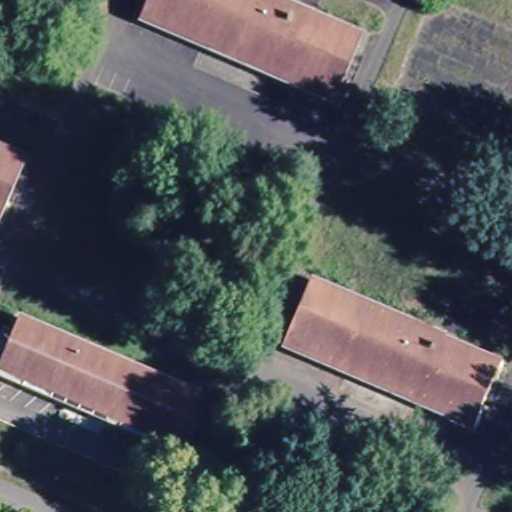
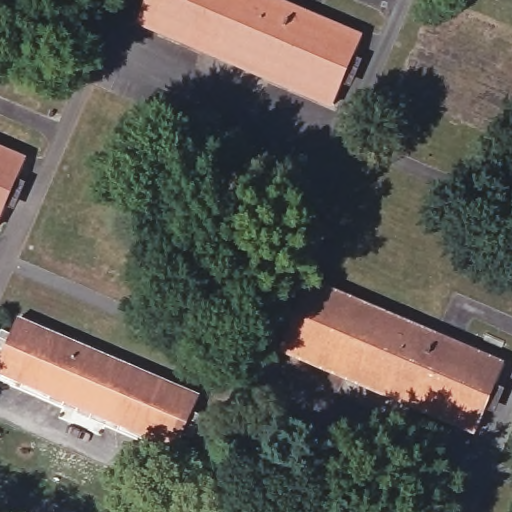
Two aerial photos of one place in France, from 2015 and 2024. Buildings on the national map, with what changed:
unchanged [(331,107),(133,21),(143,0),(288,0),(366,34),(331,107)]
unchanged [(27,157),(0,211),(0,145),(27,157)]
unchanged [(276,350),(307,276),(505,359),(473,435),(276,350)]
unchanged [(172,456),(0,379),(0,349),(17,310),(200,391),(172,456)]

